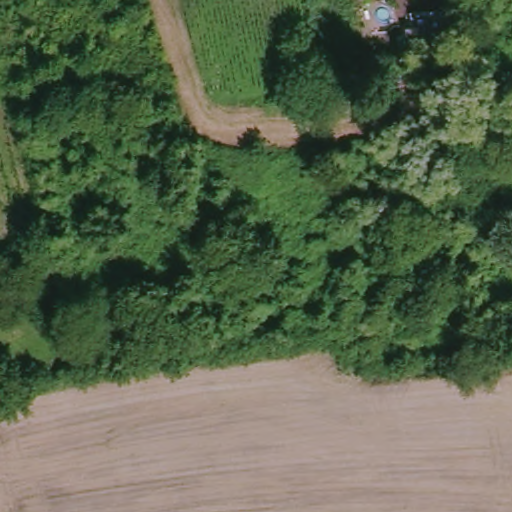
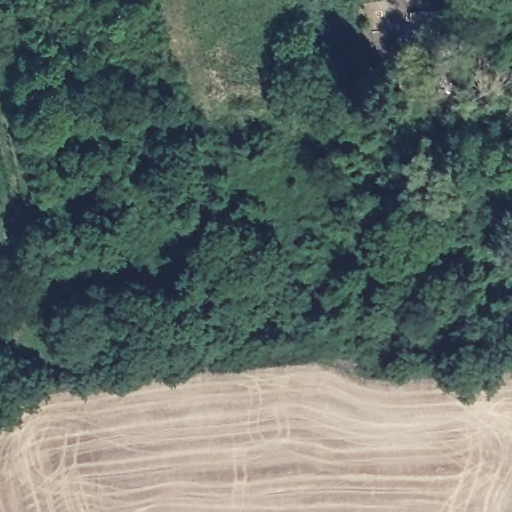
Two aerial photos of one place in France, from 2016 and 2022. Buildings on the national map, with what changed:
unchanged [(440,53),(410,56),(409,40),(439,39),(440,53)]

